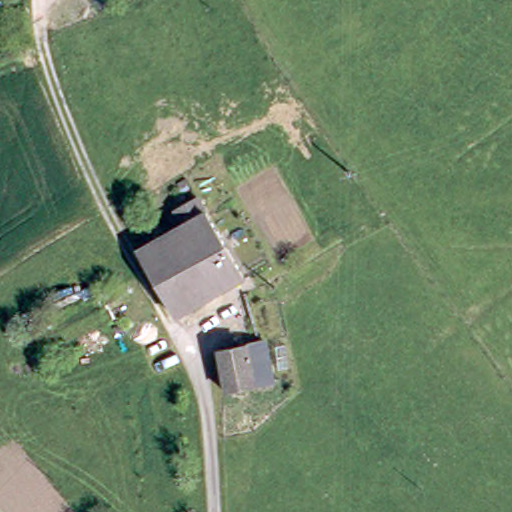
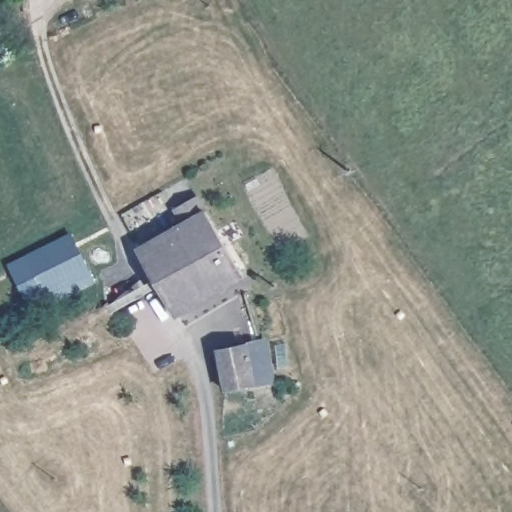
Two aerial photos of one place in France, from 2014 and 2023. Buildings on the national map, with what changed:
unchanged [(144,256),(179,236),(170,220),(203,201),(250,281),(184,323),(144,256)]
new [(72,233),(96,280),(49,304),(25,256),(72,233)]
unchanged [(214,351),(259,342),(268,381),(224,392),(222,392),(214,351)]

